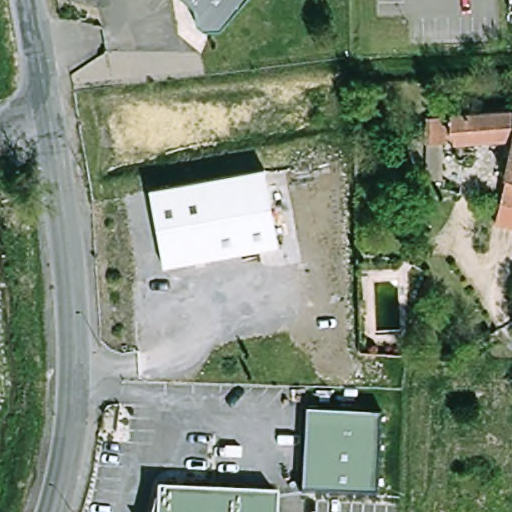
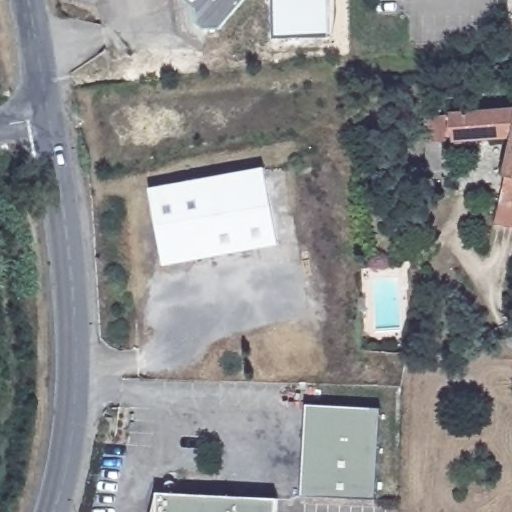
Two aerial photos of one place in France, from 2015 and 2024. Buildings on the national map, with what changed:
unchanged [(210,30),(202,24),(200,9),(189,0),(250,0),(225,30),(210,30)]
new [(272,35),(269,0),(328,0),(329,35),(272,35)]
unchanged [(454,131),(451,130),(451,129),(446,129),(446,177),(430,178),(428,115),(512,112),(512,135),(454,137),(454,131)]
unchanged [(502,199),(512,150),(512,222),(497,219),(502,199)]
unchanged [(152,191),(266,171),(279,248),(165,267),(152,191)]
unchanged [(305,403),(380,407),(375,499),(300,495),(305,403)]
unchanged [(276,498),(276,512),(156,512),(157,492),(276,498)]

